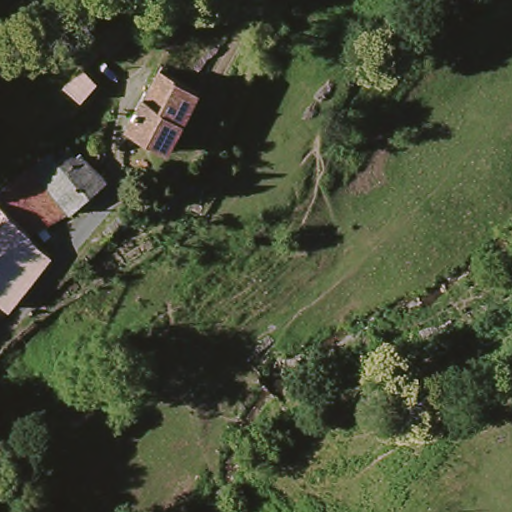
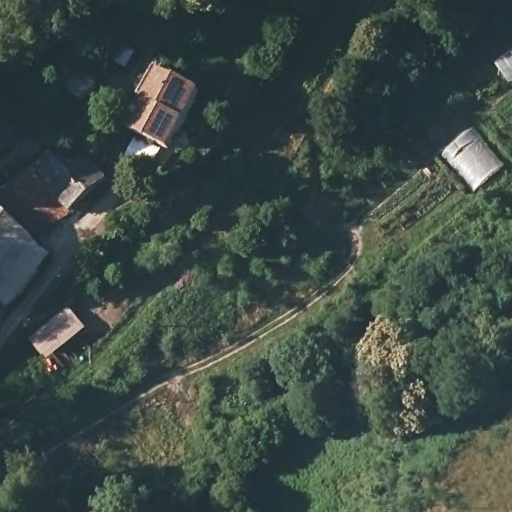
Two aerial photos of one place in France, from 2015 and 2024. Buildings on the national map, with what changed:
unchanged [(65,86),(82,68),(98,86),(82,103),(65,86)]
unchanged [(130,128),(165,69),(202,93),(167,159),(130,128)]
unchanged [(62,161),(72,154),(77,162),(87,155),(93,165),(107,182),(27,236),(52,260),(0,335),(0,199),(57,153),(62,161)]
new [(67,305),(87,329),(48,362),(27,339),(67,305)]

